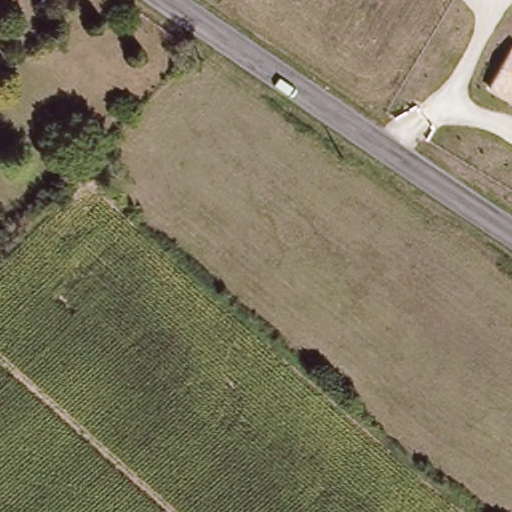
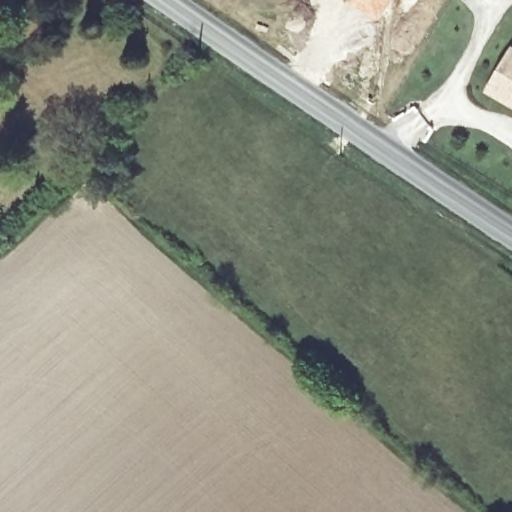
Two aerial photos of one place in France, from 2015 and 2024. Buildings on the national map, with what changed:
new [(352,0),(391,0),(381,17),(352,0)]
unchanged [(512,50),(512,108),(485,94),(512,50)]

